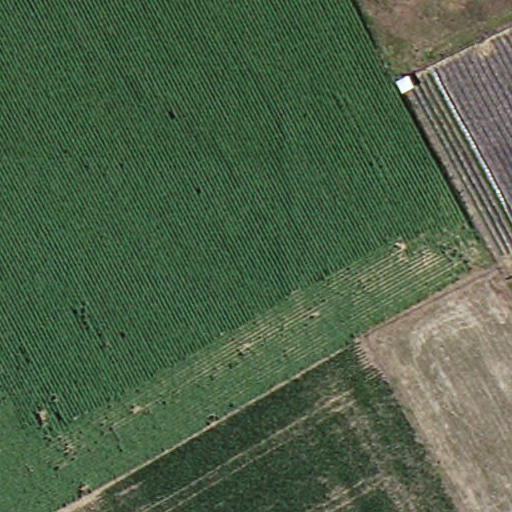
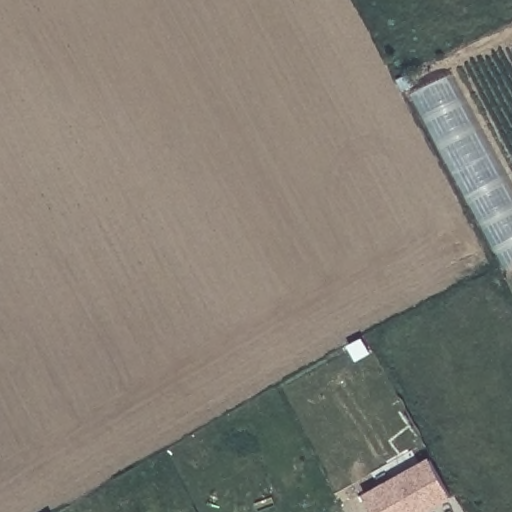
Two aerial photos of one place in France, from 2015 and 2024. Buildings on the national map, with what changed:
new [(411,93),(456,71),(512,175),(512,269),(507,272),(411,93)]
new [(428,461),(449,499),(425,512),(370,512),(362,498),(428,461)]

